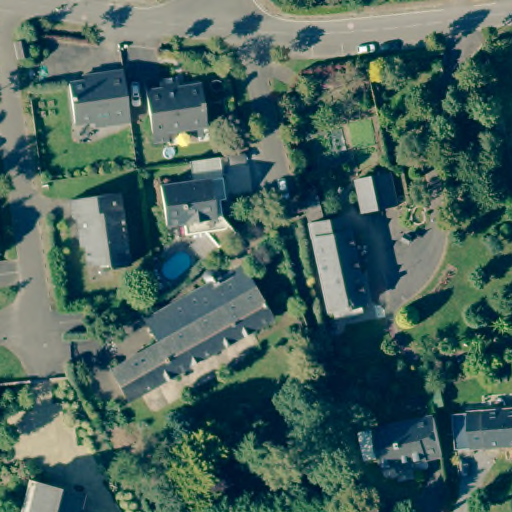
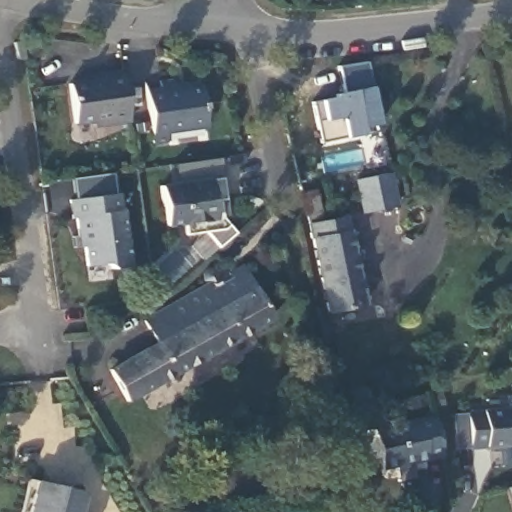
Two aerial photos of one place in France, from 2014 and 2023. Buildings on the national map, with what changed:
unchanged [(31,39),(34,55),(28,56),(23,57),(19,40),(31,39)]
new [(318,100),(333,97),(332,94),(343,92),(337,67),(366,63),(369,87),(373,86),(379,125),(363,127),(365,135),(346,137),(319,143),(312,102),(318,100)]
demolished [(338,71),(341,83),(321,87),(319,75),(338,71)]
unchanged [(103,128),(103,124),(72,128),(67,87),(106,82),(105,76),(121,74),(128,125),(103,128)]
unchanged [(159,87),(158,80),(175,77),(177,90),(199,87),(205,130),(164,135),(165,143),(151,145),(144,89),(159,87)]
unchanged [(394,205),(361,212),(354,180),(387,172),(394,205)]
unchanged [(212,247),(200,234),(179,237),(178,226),(163,228),(158,190),(221,181),(224,201),(219,201),(222,224),(231,233),(212,247)]
unchanged [(120,191),(127,262),(90,266),(88,244),(83,245),(81,225),(74,226),(71,196),(120,191)]
unchanged [(361,305),(326,312),(303,212),(300,200),(316,197),(322,225),(342,220),(361,305)]
unchanged [(268,317),(202,355),(124,400),(106,370),(153,342),(141,321),(204,283),(200,277),(200,272),(204,267),(210,267),(215,270),(217,277),(238,265),(268,317)]
unchanged [(471,414),(512,410),(512,446),(474,450),(459,451),(456,416),(471,414)]
unchanged [(254,416),(256,412),(259,412),(263,412),(265,414),(265,421),(261,423),(256,423),(254,420),(254,416)]
unchanged [(404,464),(406,471),(389,475),(387,468),(377,470),(368,428),(424,416),(433,457),(404,464)]
unchanged [(84,491),(80,512),(23,512),(30,477),(84,491)]

